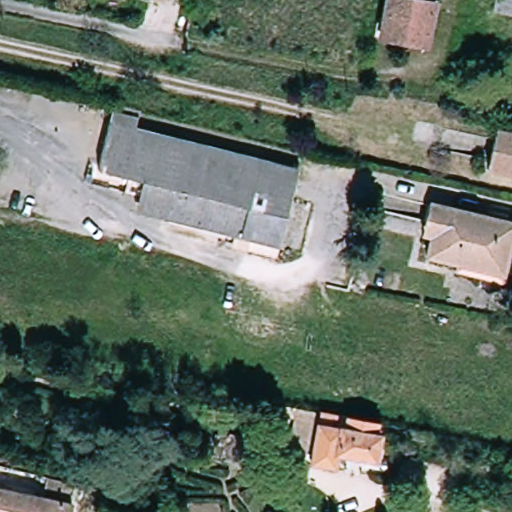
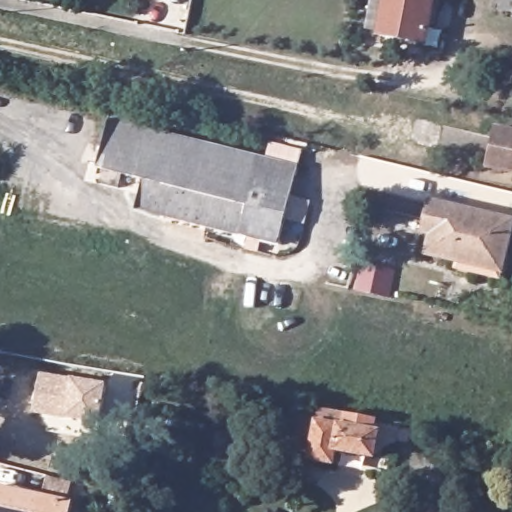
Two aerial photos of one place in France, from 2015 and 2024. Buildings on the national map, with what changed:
unchanged [(154,0),(169,0),(169,2),(154,0)]
unchanged [(436,4),(435,11),(427,10),(419,47),(377,39),(384,0),(427,0),(426,2),(436,4)]
unchanged [(500,0),(512,0),(512,13),(499,11),(500,0)]
unchanged [(303,169),(282,246),(171,217),(178,188),(103,167),(116,121),(303,169)]
unchanged [(493,132),(512,136),(512,177),(485,172),(493,132)]
unchanged [(512,246),(504,280),(457,268),(459,260),(430,252),(434,234),(426,232),(434,200),(512,219),(512,246)]
new [(72,377),(107,383),(101,422),(67,419),(34,414),(40,373),(72,377)]
unchanged [(383,418),(381,427),(387,427),(383,457),(341,453),(339,463),(312,461),(321,411),(383,418)]
new [(115,472),(100,456),(125,434),(139,451),(115,472)]
unchanged [(296,463),(275,460),(274,467),(264,466),(247,463),(252,437),(269,440),(299,446),(296,463)]
unchanged [(0,487),(77,504),(76,512),(0,512),(0,489),(0,487)]

